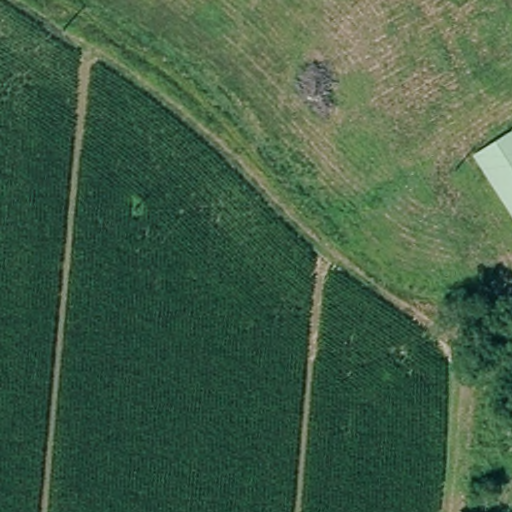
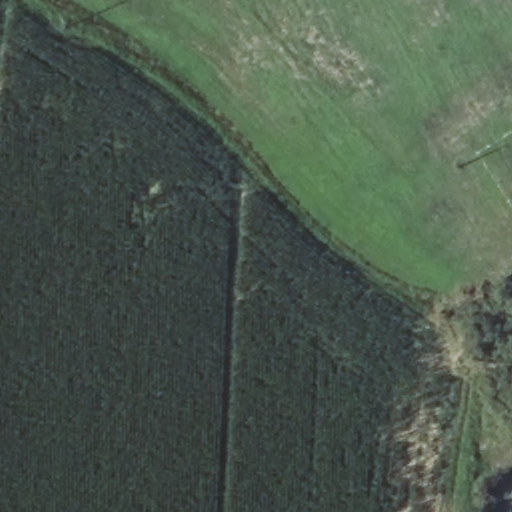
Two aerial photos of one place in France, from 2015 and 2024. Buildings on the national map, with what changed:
demolished [(512,133),(512,212),(475,154),(512,133)]

